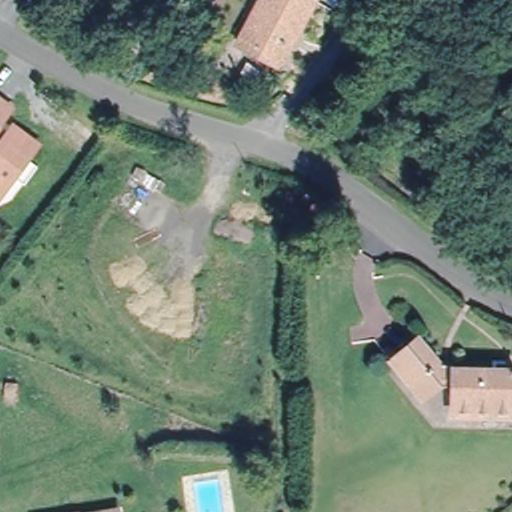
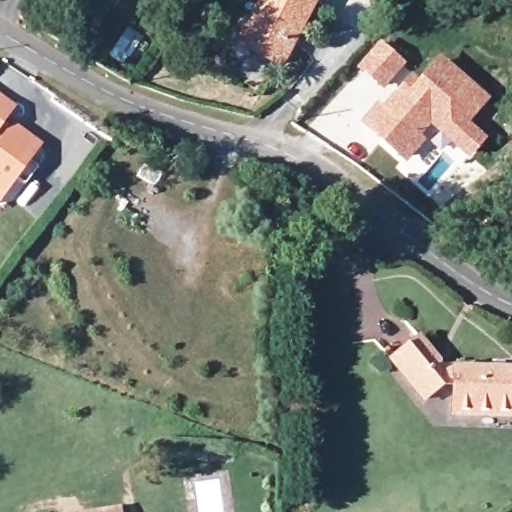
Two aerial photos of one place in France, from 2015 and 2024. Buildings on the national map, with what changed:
unchanged [(282,64),(241,43),(263,0),(311,0),(313,1),(282,64)]
new [(355,67),(379,41),(406,64),(383,90),(355,67)]
new [(469,160),(430,126),(421,135),(426,140),(406,163),(360,123),(377,101),(382,105),(412,72),(419,77),(439,55),(490,99),(469,123),(488,137),(469,160)]
unchanged [(0,110),(0,100),(5,104),(0,110)]
unchanged [(10,125),(31,141),(21,154),(32,162),(17,181),(6,172),(0,180),(0,129),(4,132),(10,125)]
unchanged [(420,341),(442,372),(512,374),(512,419),(452,417),(453,392),(439,391),(422,405),(390,366),(416,345),(420,341)]

